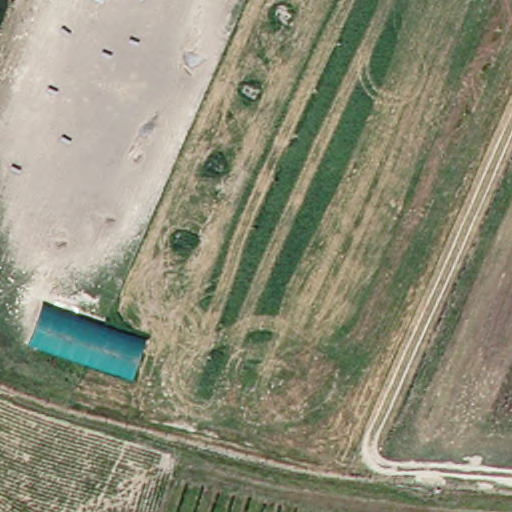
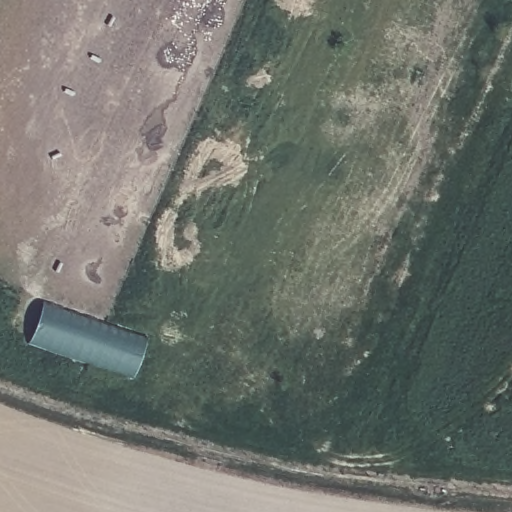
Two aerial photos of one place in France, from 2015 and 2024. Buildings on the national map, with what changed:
unchanged [(147,335),(135,377),(30,342),(43,298),(147,335)]

